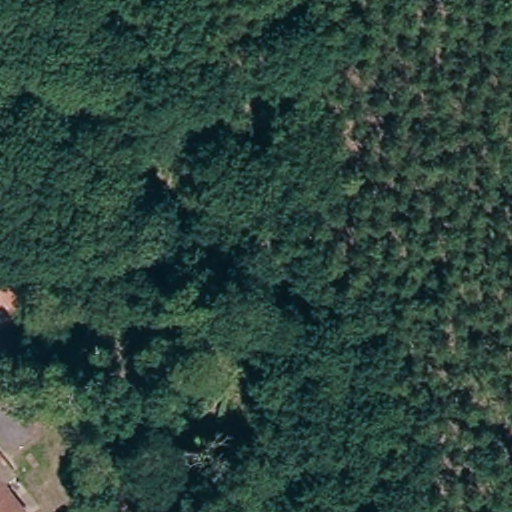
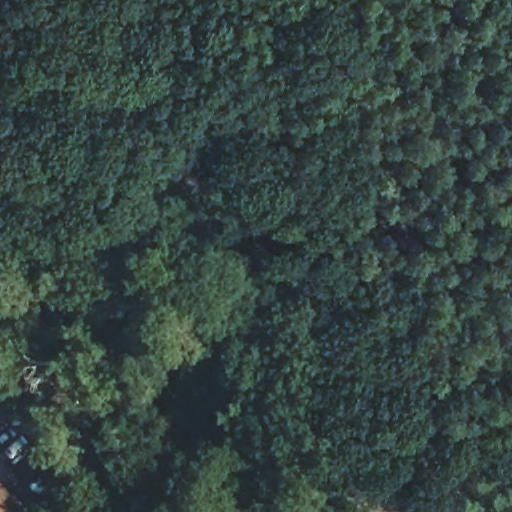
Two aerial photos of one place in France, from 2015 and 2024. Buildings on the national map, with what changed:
unchanged [(0,333),(0,308),(12,324),(0,333)]
unchanged [(28,345),(0,366),(0,333),(12,324),(28,345)]
unchanged [(0,478),(0,461),(8,471),(0,478)]
unchanged [(0,480),(23,512),(0,512),(0,480)]
unchanged [(144,512),(143,512),(80,512),(121,480),(144,512)]

